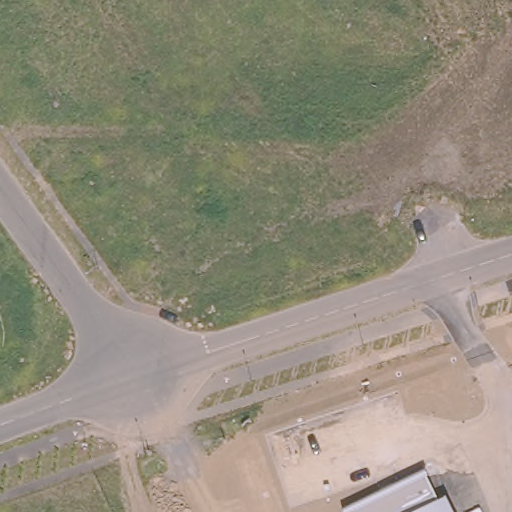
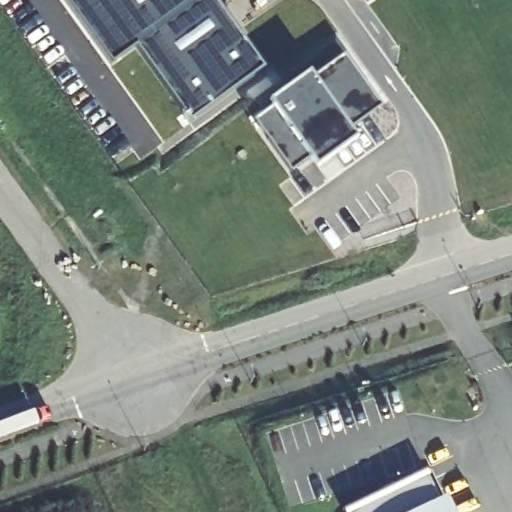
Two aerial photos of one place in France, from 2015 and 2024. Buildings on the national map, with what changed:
new [(112,62),(66,0),(214,0),(264,68),(190,120),(135,46),(112,62)]
new [(273,109),(268,103),(308,73),(314,79),(343,57),(382,106),(348,131),(355,141),(317,169),(310,160),(290,172),(253,123),(273,109)]
unchanged [(440,502),(447,497),(454,512),(345,512),(425,472),(440,502)]

